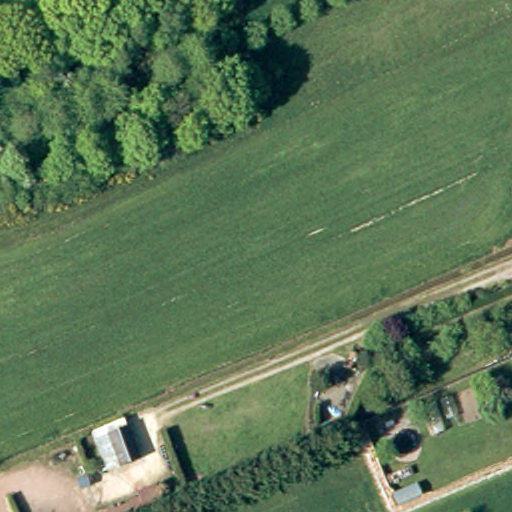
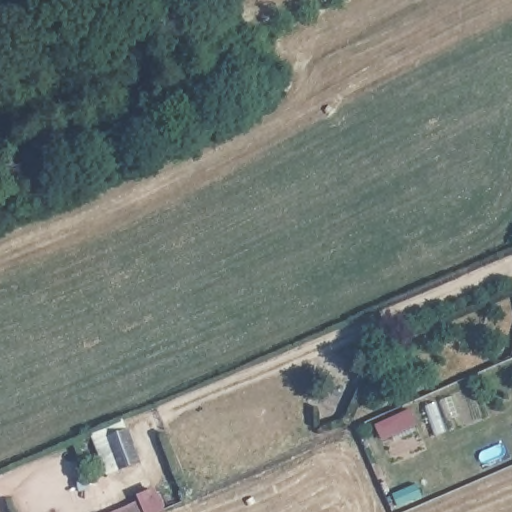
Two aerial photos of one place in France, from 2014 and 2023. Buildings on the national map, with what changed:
unchanged [(143,463),(117,474),(96,431),(123,420),(143,463)]
unchanged [(156,509),(149,490),(164,483),(172,502),(156,509)]

